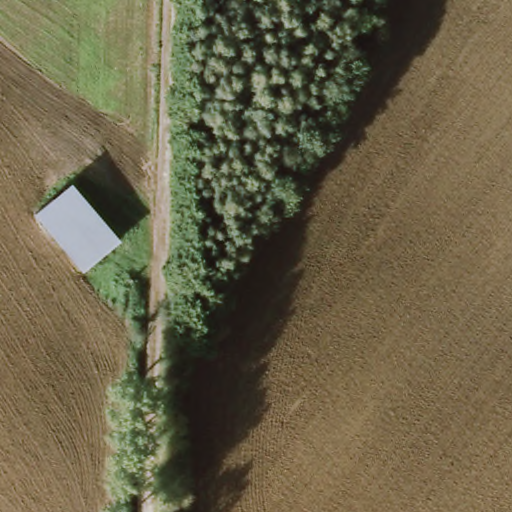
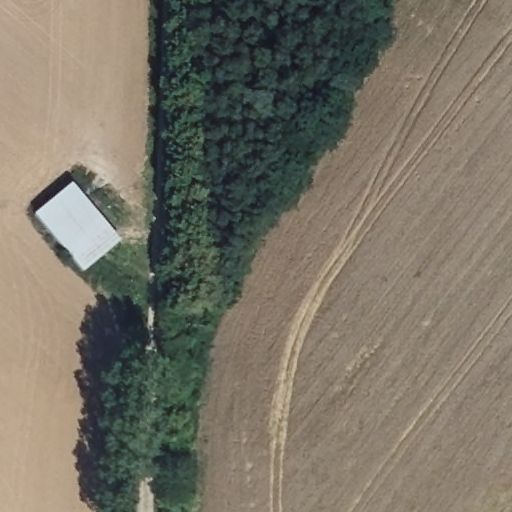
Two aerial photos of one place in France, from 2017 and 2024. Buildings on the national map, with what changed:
unchanged [(123,241),(83,275),(34,212),(73,183),(123,241)]

